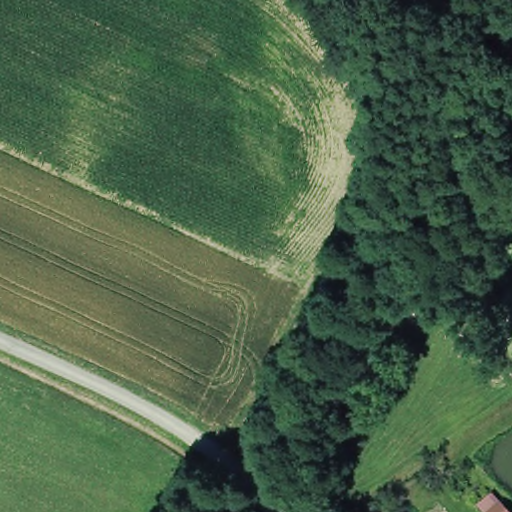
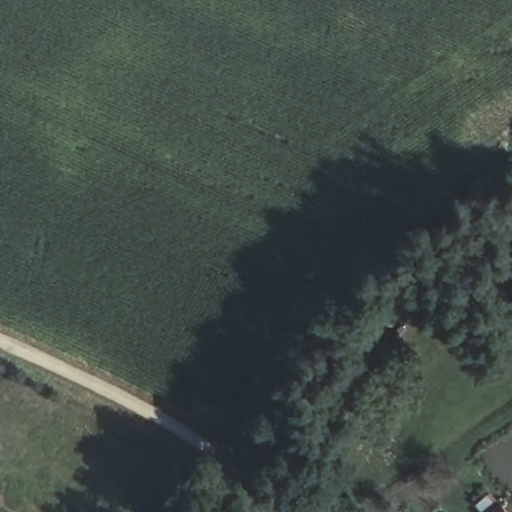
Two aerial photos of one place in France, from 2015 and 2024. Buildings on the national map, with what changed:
unchanged [(475,504),(493,490),(511,512),(482,512),(475,504)]

